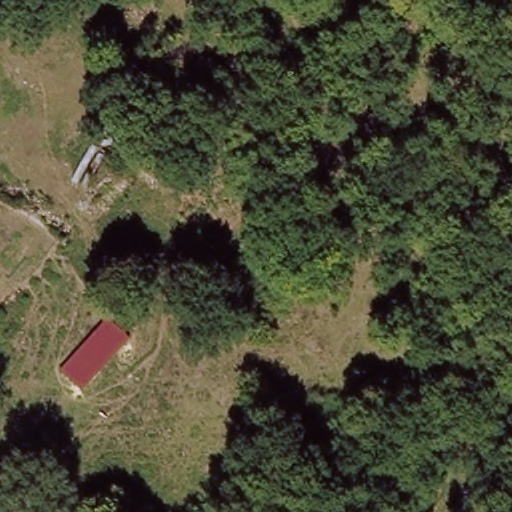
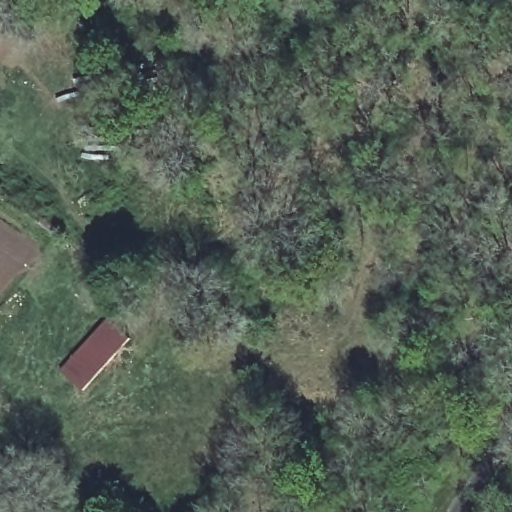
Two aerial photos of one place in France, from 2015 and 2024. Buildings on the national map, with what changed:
unchanged [(124,343),(78,393),(57,375),(105,322),(124,343)]

